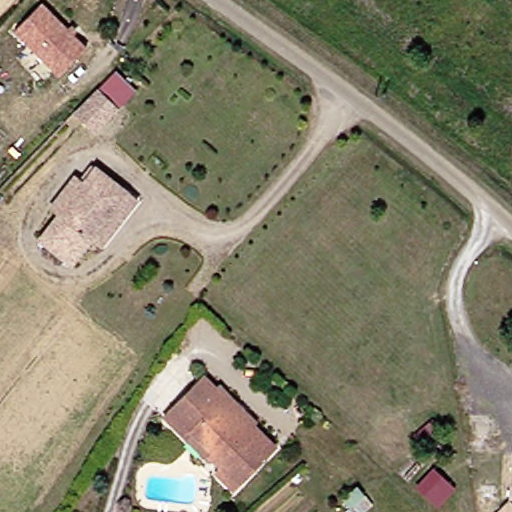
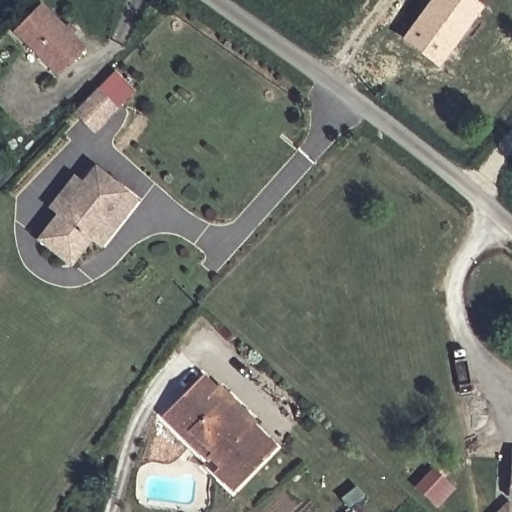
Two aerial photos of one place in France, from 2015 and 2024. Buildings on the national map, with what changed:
new [(401,39),(429,0),(475,0),(483,6),(439,68),(401,39)]
unchanged [(40,3),(84,48),(55,76),(11,30),(40,3)]
unchanged [(106,81),(116,72),(138,92),(127,102),(104,126),(82,105),(106,81)]
unchanged [(99,234),(75,265),(41,238),(65,207),(56,202),(77,175),(85,180),(100,159),(149,193),(134,213),(111,243),(99,234)]
unchanged [(163,419),(203,376),(217,389),(224,381),(260,415),(254,423),(279,446),(237,490),(222,477),(232,465),(217,451),(208,460),(182,436),(163,419)]
unchanged [(506,450),(512,451),(512,500),(505,500),(506,450)]
unchanged [(456,490),(438,510),(413,487),(431,469),(456,490)]
unchanged [(358,512),(352,512),(355,509),(358,512)]

